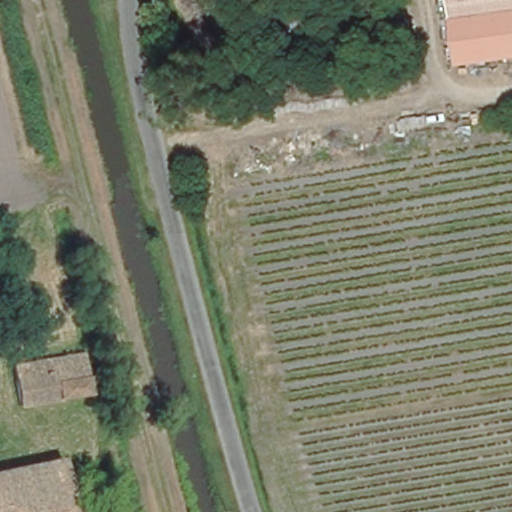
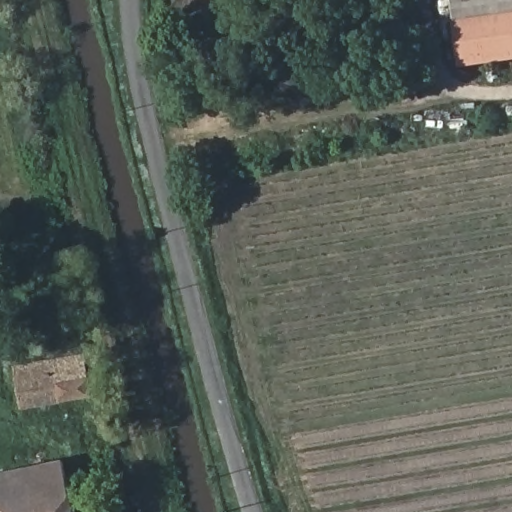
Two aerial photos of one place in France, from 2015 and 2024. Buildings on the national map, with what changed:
unchanged [(451,0),(512,0),(512,13),(454,21),(451,0)]
unchanged [(512,13),(512,59),(463,67),(449,22),(454,21),(512,13)]
unchanged [(96,400),(22,410),(15,367),(89,357),(96,400)]
unchanged [(73,457),(88,512),(0,512),(0,474),(73,457)]

